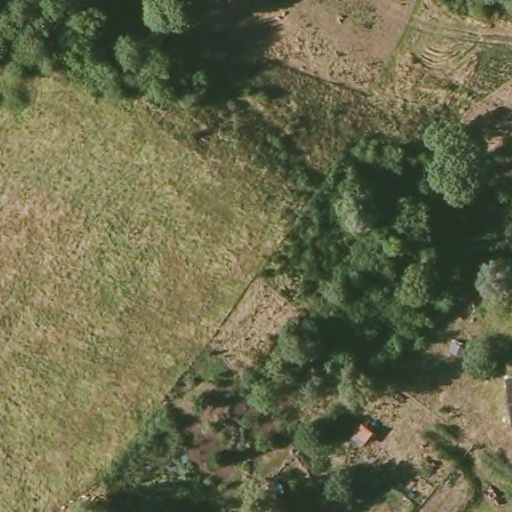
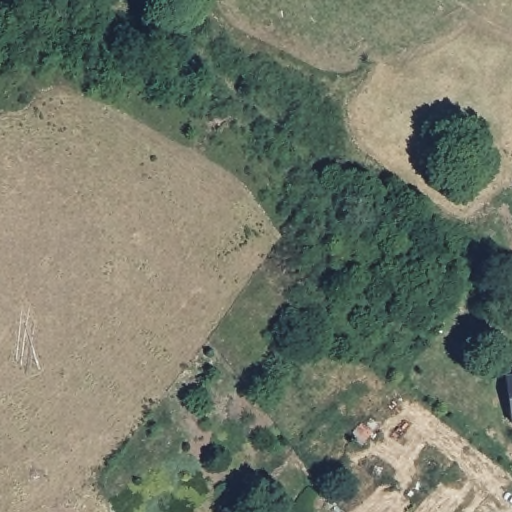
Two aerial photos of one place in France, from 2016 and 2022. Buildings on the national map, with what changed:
unchanged [(512,422),(509,422),(504,376),(512,375),(512,422)]

